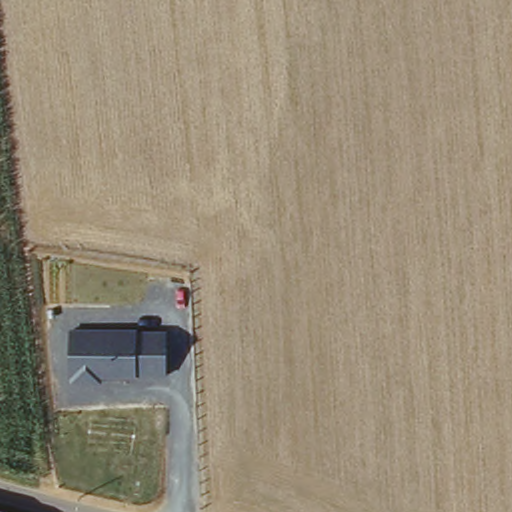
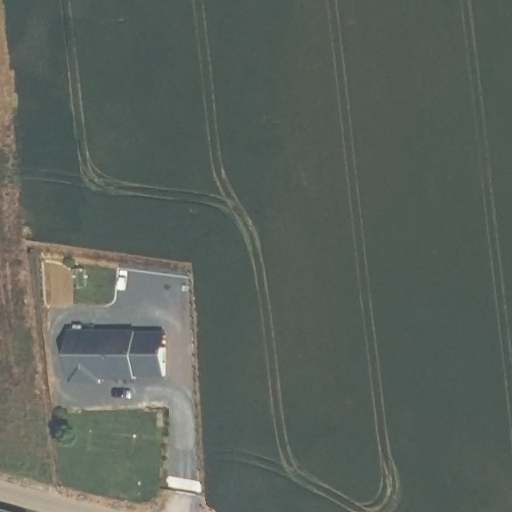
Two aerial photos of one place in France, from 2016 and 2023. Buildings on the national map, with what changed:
unchanged [(139,329),(139,331),(168,331),(168,375),(100,378),(100,383),(68,382),(67,329),(139,329)]
unchanged [(8,512),(0,512),(0,510),(8,512)]

